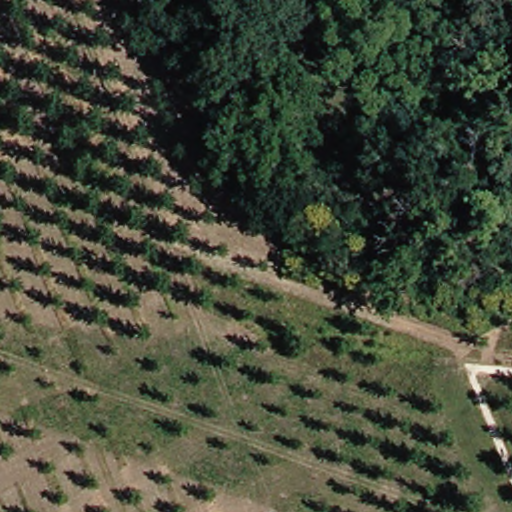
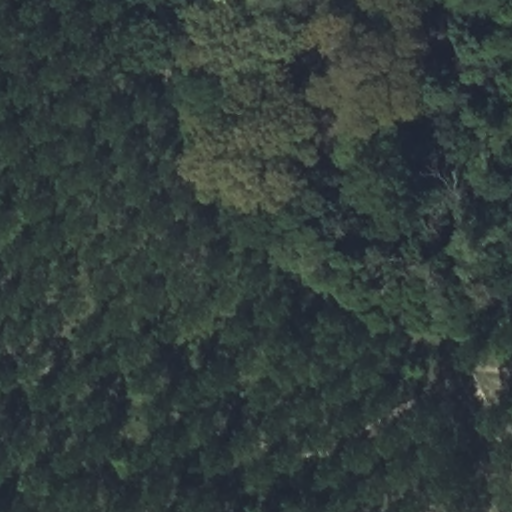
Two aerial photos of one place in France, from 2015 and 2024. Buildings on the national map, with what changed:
[]

